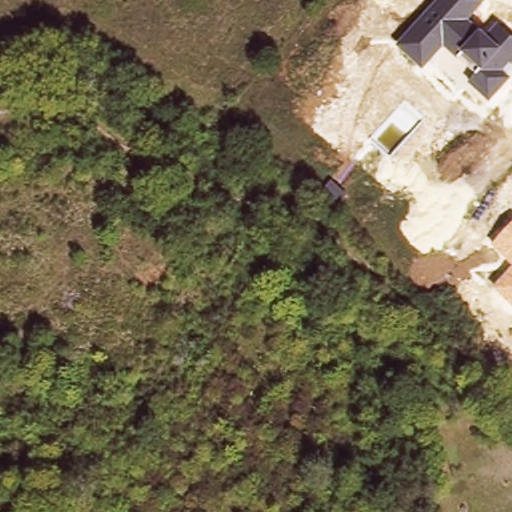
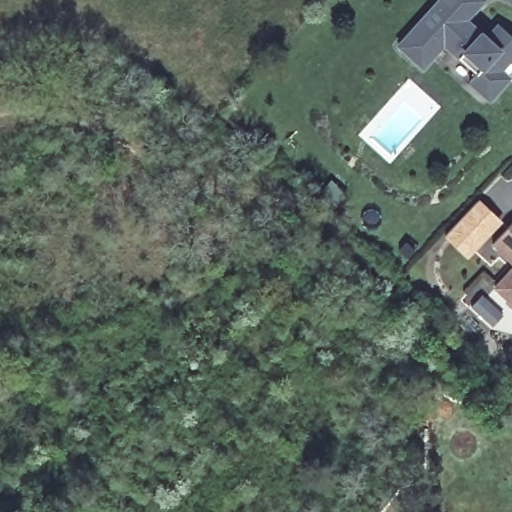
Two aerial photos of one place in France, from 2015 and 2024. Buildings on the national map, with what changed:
unchanged [(469,20),(485,35),(496,22),(512,36),(512,64),(505,71),(511,78),(490,103),(468,83),(476,74),(443,45),(422,69),(394,43),(434,0),(486,0),(487,0),(469,20)]
new [(503,221),(468,256),(445,234),(480,198),(503,221)]
unchanged [(512,223),(512,264),(492,244),(512,223)]
unchanged [(512,267),(512,306),(492,287),(512,267)]

